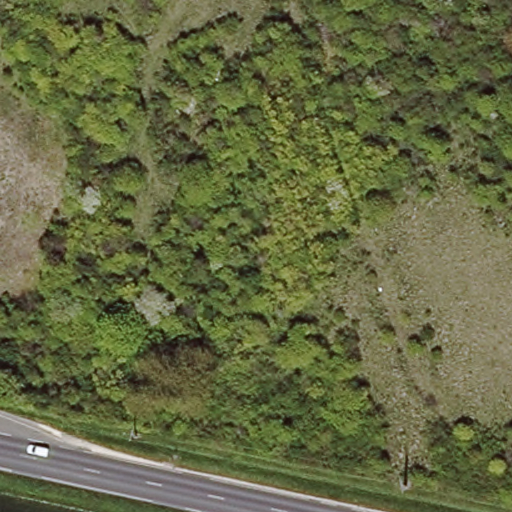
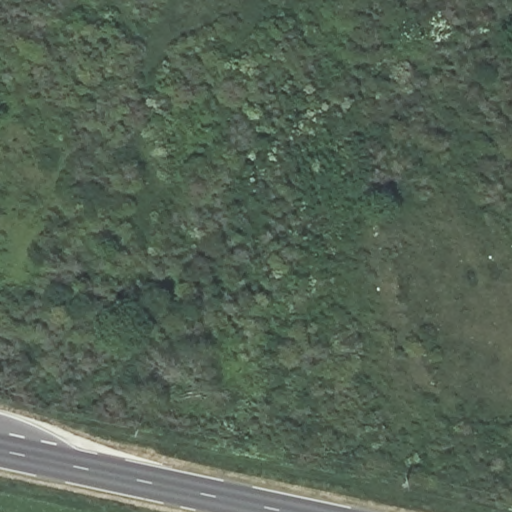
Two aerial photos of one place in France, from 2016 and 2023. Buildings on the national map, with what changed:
unchanged [(178,100),(194,92),(200,105),(183,112),(178,100)]
unchanged [(210,405),(267,416),(262,443),(205,432),(210,405)]

